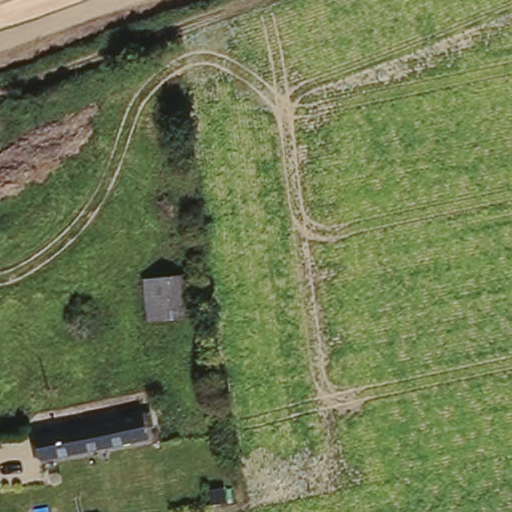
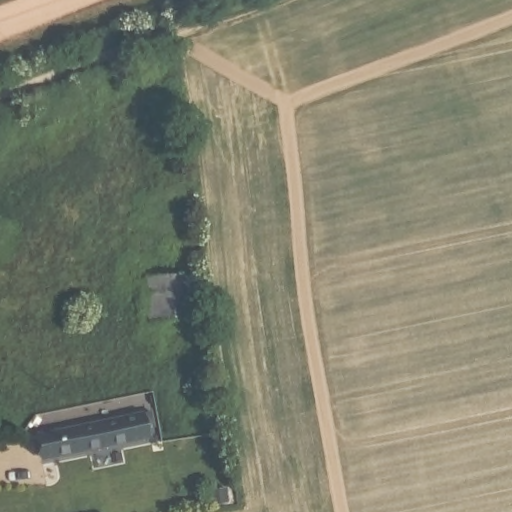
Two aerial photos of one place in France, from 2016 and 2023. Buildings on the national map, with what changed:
unchanged [(189,274),(191,305),(199,304),(200,314),(149,320),(144,280),(189,274)]
unchanged [(135,414),(139,439),(37,458),(32,434),(135,414)]
unchanged [(219,414),(221,430),(204,431),(202,415),(219,414)]

